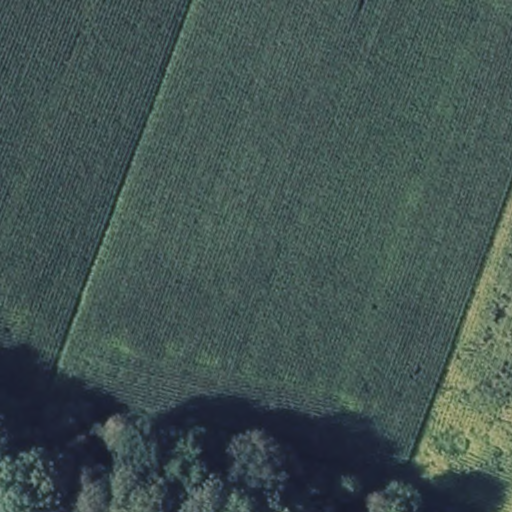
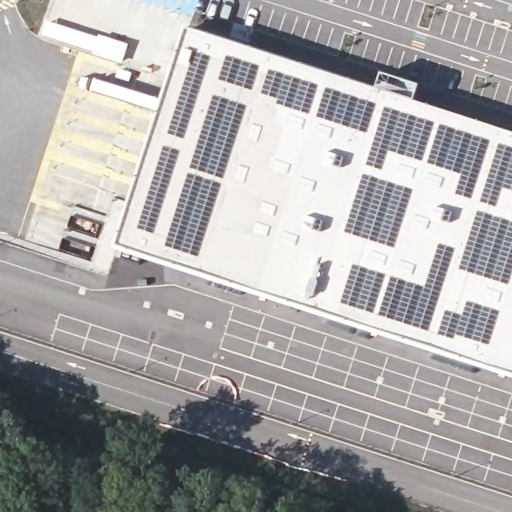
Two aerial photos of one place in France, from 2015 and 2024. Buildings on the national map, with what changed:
new [(378,92),(383,77),(420,89),(416,103),(512,134),(512,376),(120,249),(189,31),(378,92)]

